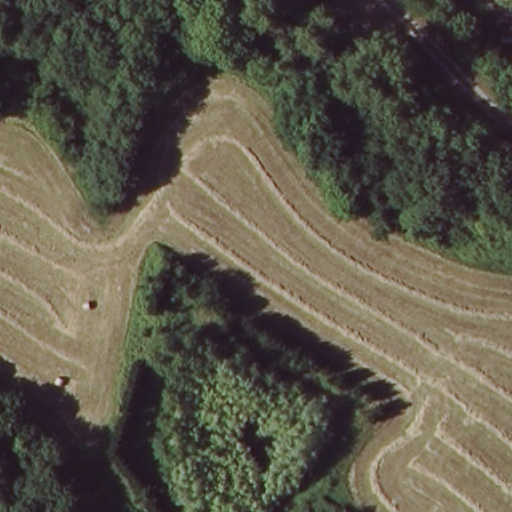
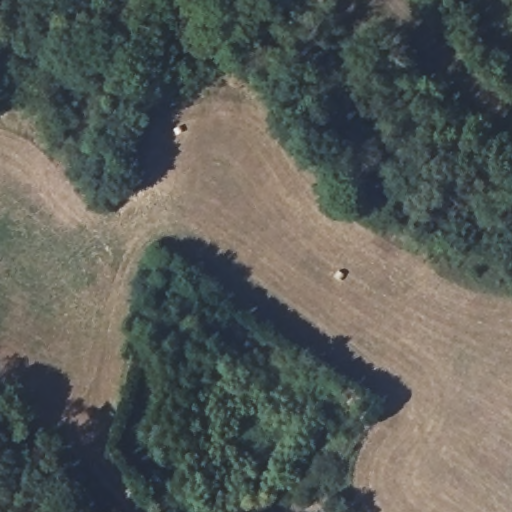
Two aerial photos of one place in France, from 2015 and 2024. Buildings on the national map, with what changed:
[]

